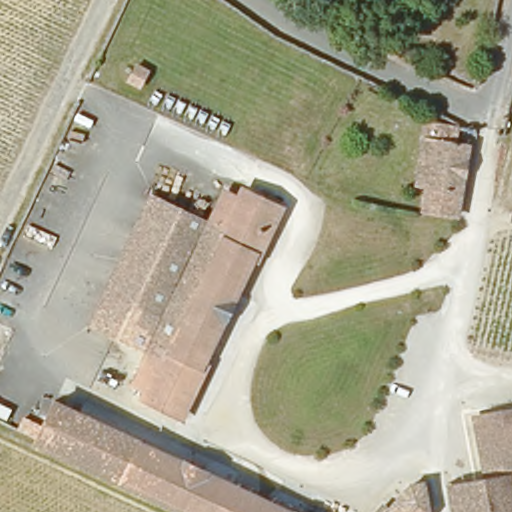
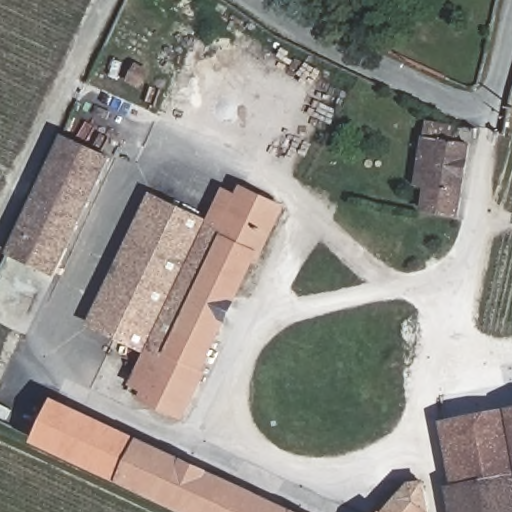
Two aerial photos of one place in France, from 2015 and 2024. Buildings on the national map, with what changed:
unchanged [(142,91),(127,84),(137,64),(153,71),(142,91)]
unchanged [(461,143),(467,144),(459,212),(429,212),(432,188),(424,187),(432,123),(463,128),(461,143)]
new [(54,277),(7,255),(63,134),(112,156),(54,277)]
unchanged [(280,209),(261,247),(255,245),(201,362),(206,365),(181,417),(144,402),(147,395),(139,389),(153,357),(95,327),(159,193),(212,222),(224,196),(237,198),(242,189),(280,209)]
unchanged [(37,443),(33,442),(52,406),(283,512),(186,512),(37,443)]
new [(512,418),(471,426),(480,483),(454,489),(439,421),(512,408),(512,418)]
unchanged [(445,491),(480,483),(471,426),(512,418),(512,512),(449,512),(445,491)]
unchanged [(387,494),(395,498),(405,487),(408,487),(421,480),(423,512),(371,512),(387,494)]

